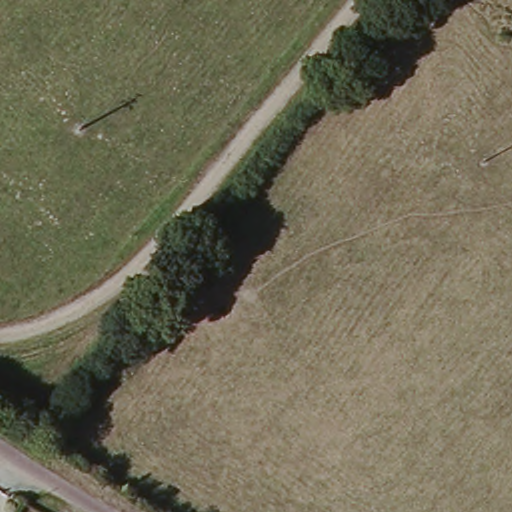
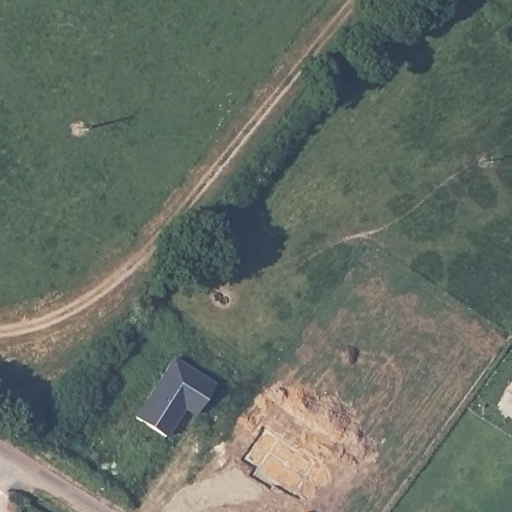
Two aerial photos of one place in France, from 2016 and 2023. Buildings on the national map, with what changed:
new [(215,385),(195,416),(184,409),(166,435),(135,416),(172,357),(215,385)]

